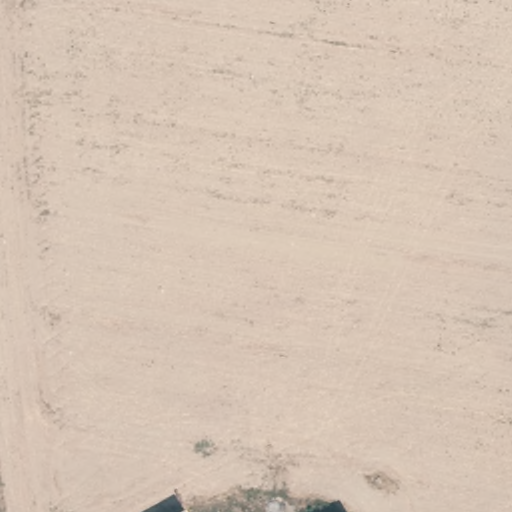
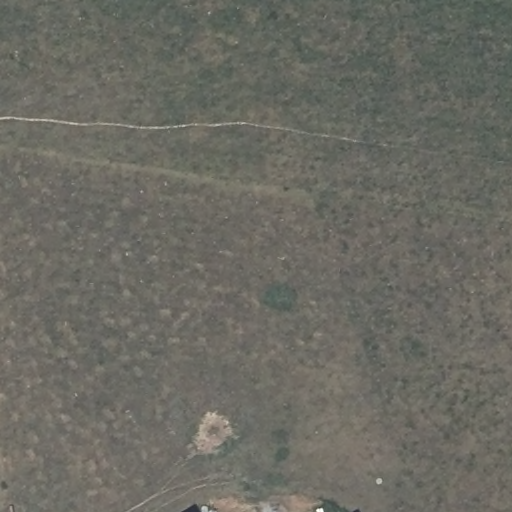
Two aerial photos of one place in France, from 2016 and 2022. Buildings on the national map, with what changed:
[]

